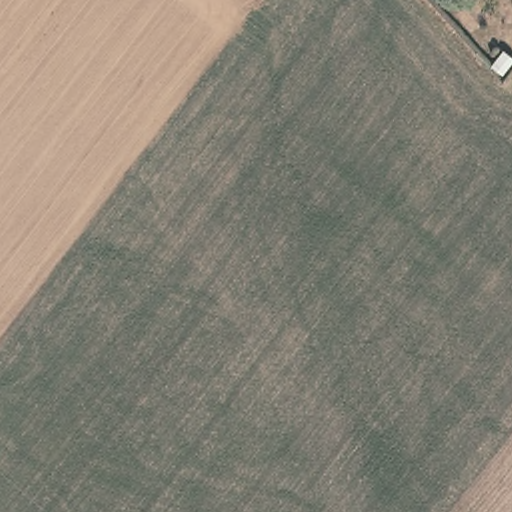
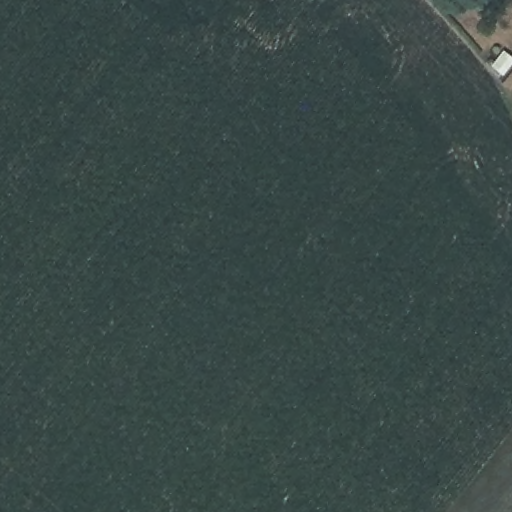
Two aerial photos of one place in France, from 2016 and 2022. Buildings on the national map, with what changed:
[]

